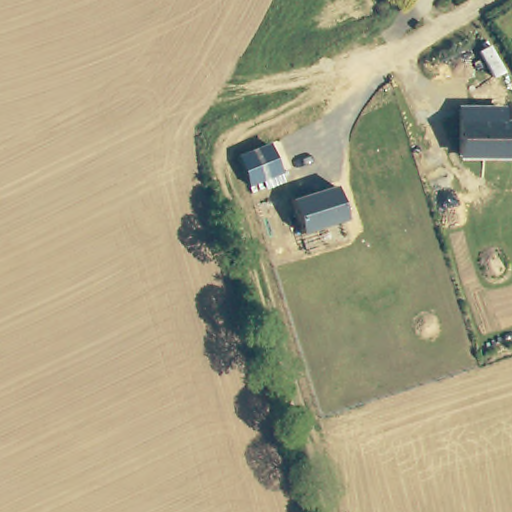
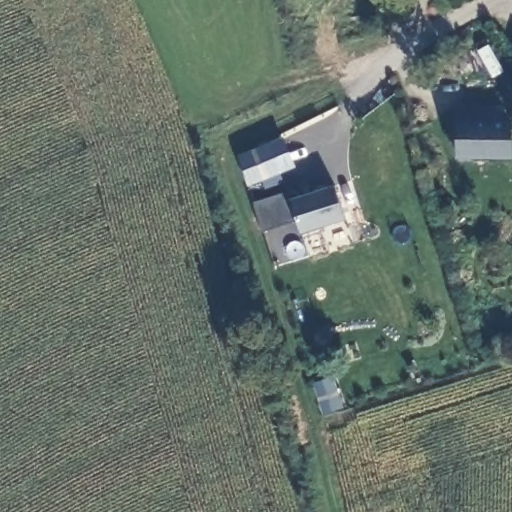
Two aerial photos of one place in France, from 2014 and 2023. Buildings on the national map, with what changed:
unchanged [(461,103),(510,103),(509,118),(512,118),(512,157),(461,156),(461,103)]
unchanged [(264,191),(261,182),(249,187),(239,154),(271,143),(286,184),(264,191)]
unchanged [(302,235),(291,198),(336,185),(346,220),(302,235)]

